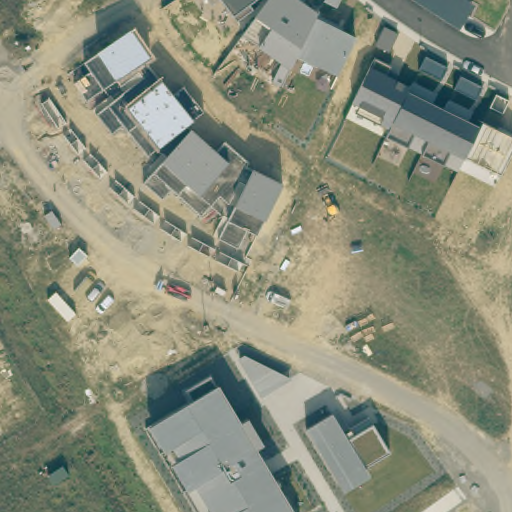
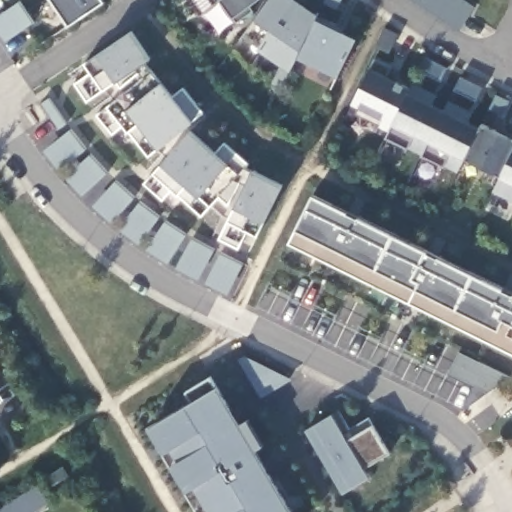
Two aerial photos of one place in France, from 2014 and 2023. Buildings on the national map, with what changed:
new [(103,0),(105,2),(70,25),(51,0),(103,0)]
unchanged [(211,0),(222,0),(214,4),(211,0)]
unchanged [(258,0),(235,18),(222,0),(258,0)]
unchanged [(291,73),(283,87),(272,81),(282,64),(261,49),(245,35),(257,21),(271,0),(299,0),(319,14),(317,18),(357,39),(339,75),(297,59),(291,73)]
new [(463,26),(419,0),(464,0),(475,6),(463,26)]
new [(5,44),(0,36),(0,16),(11,8),(20,3),(27,13),(34,24),(26,29),(5,44)]
unchanged [(128,130),(124,125),(113,134),(99,115),(111,106),(145,79),(141,73),(121,86),(117,80),(104,90),(88,101),(76,84),(93,73),(86,64),(100,54),(132,33),(150,59),(146,63),(164,84),(174,98),(184,89),(202,113),(193,122),(159,148),(149,156),(128,130)]
unchanged [(458,170),(387,137),(390,130),(357,113),(360,106),(354,104),(370,69),(376,59),(391,65),(386,74),(410,86),(408,90),(480,126),(458,170)]
new [(493,192),(502,177),(465,158),(480,126),(483,123),(512,137),(512,202),(493,192)]
new [(69,132),(85,151),(78,158),(58,174),(41,154),(61,138),(69,132)]
unchanged [(219,239),(229,221),(236,207),(247,184),(240,181),(228,204),(220,195),(211,206),(201,217),(178,195),(172,190),(163,200),(145,184),(155,173),(164,163),(193,132),(216,154),(226,142),(250,165),(246,169),(254,171),(282,186),(264,222),(257,236),(247,231),(238,249),(219,239)]
new [(89,156),(106,174),(99,182),(80,199),(63,179),(81,163),(89,156)]
new [(115,183),(134,199),(127,207),(111,226),(91,209),(108,190),(115,183)]
new [(299,229),(315,197),(512,293),(512,353),(291,242),(299,229)]
new [(138,203),(160,219),(154,228),(138,247),(117,232),(132,211),(138,203)]
new [(164,223),(186,237),(181,245),(167,266),(145,253),(159,231),(164,223)]
new [(191,239),(214,252),(209,260),(197,283),(175,270),(187,249),(191,239)]
new [(220,254),(242,265),(238,274),(227,297),(204,286),(215,263),(220,254)]
new [(460,352),(510,378),(463,411),(474,388),(449,375),(460,352)]
unchanged [(241,357),(244,354),(292,379),(264,398),(241,357)]
unchanged [(196,484),(189,489),(173,464),(180,459),(172,447),(166,452),(151,425),(193,401),(187,392),(209,377),(215,387),(218,385),(240,423),(248,419),(264,446),(257,449),(296,512),(213,512),(196,484)]
unchanged [(306,429),(334,414),(336,418),(342,414),(351,429),(369,418),(374,425),(390,454),(365,468),(370,476),(344,492),(306,429)]
new [(48,504),(35,512),(0,512),(0,510),(38,487),(48,504)]

